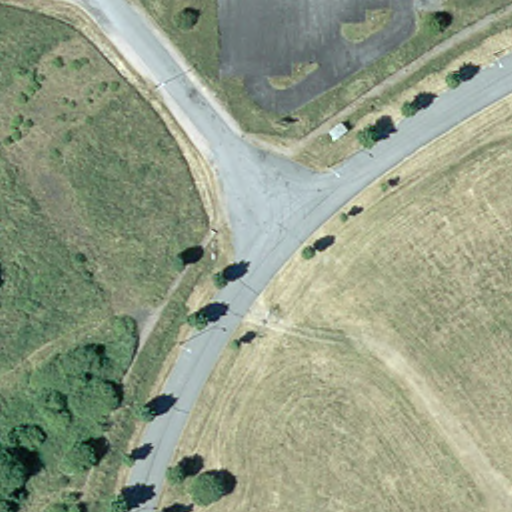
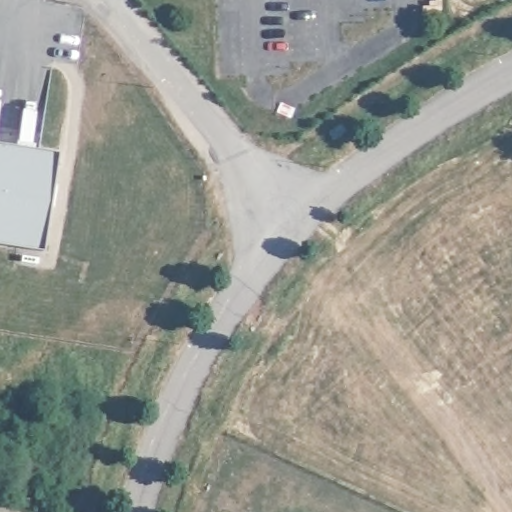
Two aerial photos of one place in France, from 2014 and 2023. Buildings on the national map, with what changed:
unchanged [(334,141),(327,133),(340,124),(346,131),(334,141)]
new [(60,152),(45,249),(0,243),(0,143),(60,152)]

